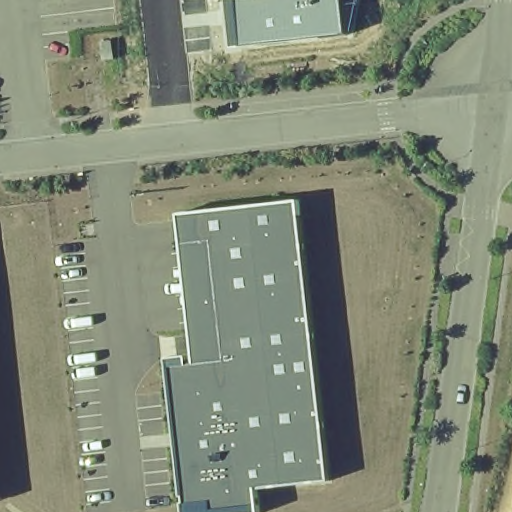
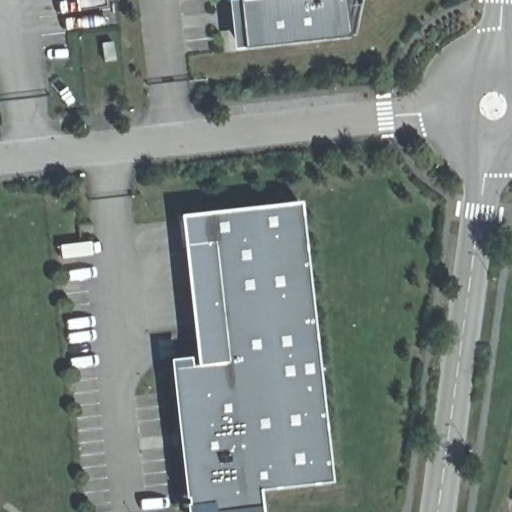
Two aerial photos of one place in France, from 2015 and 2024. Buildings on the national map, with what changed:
unchanged [(358,33),(353,34),(250,46),(238,46),(234,0),(366,0),(358,33)]
unchanged [(113,40),(116,59),(105,60),(102,42),(113,40)]
unchanged [(329,482),(257,489),(259,512),(185,512),(167,359),(187,357),(188,366),(196,365),(178,215),(298,201),(329,482)]

